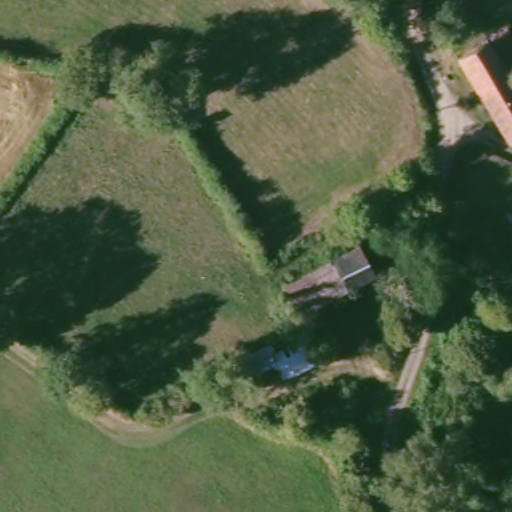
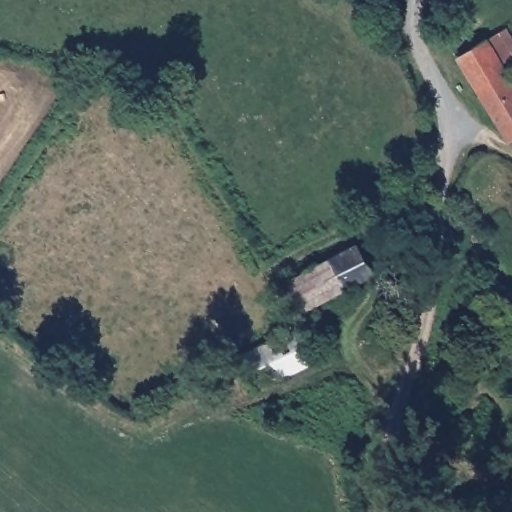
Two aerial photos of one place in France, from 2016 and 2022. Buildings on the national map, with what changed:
unchanged [(457,56),(487,39),(512,87),(512,137),(505,142),(472,83),(457,56)]
unchanged [(357,240),(371,269),(297,307),(281,281),(351,244),(357,240)]
unchanged [(245,359),(297,329),(312,354),(261,384),(245,359)]

